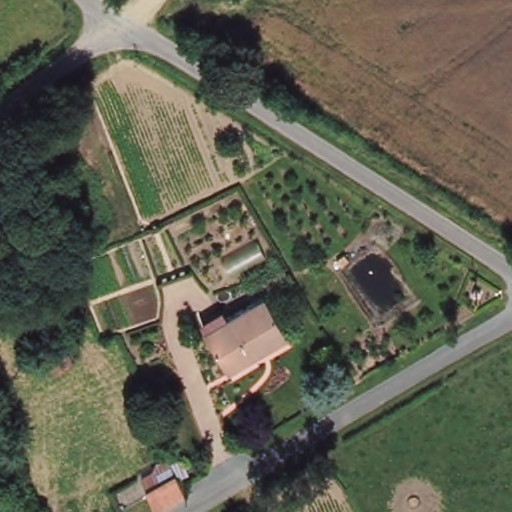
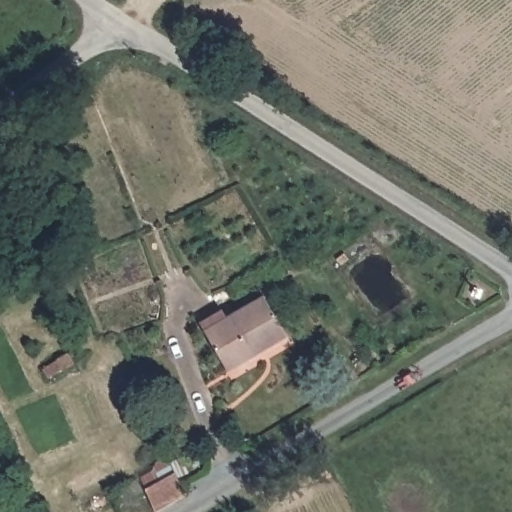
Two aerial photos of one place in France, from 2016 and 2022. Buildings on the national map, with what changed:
unchanged [(227,372),(206,332),(266,297),(288,336),(227,372)]
unchanged [(48,355),(60,348),(64,355),(66,360),(54,367),(51,362),(48,355)]
unchanged [(185,493),(158,507),(142,477),(171,458),(180,481),(185,493)]

